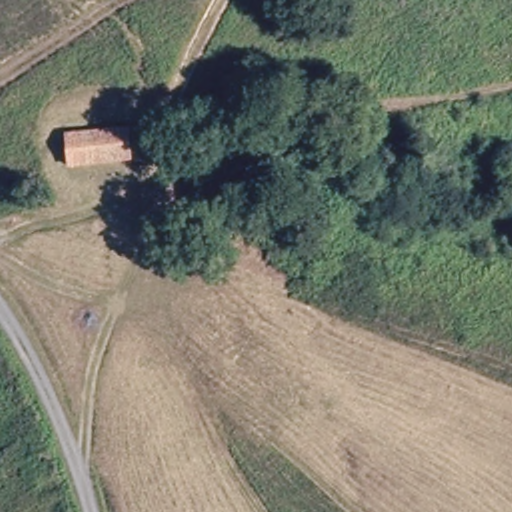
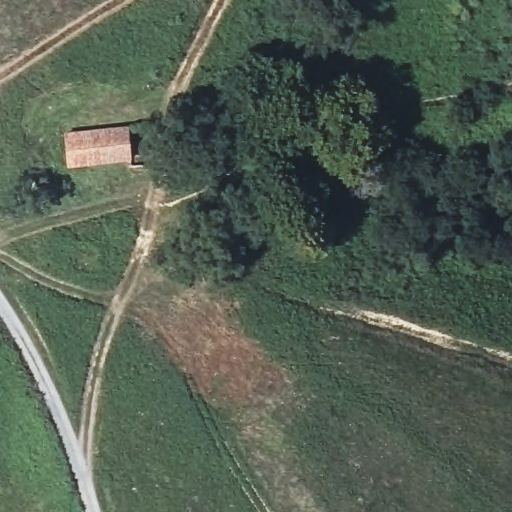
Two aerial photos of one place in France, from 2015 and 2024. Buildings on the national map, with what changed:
unchanged [(56,166),(55,122),(147,124),(145,169),(56,166)]

